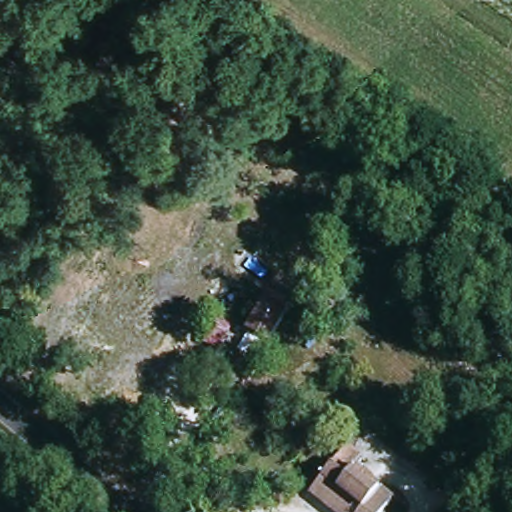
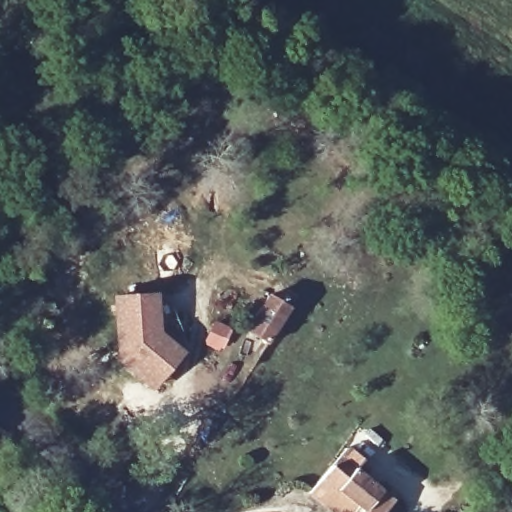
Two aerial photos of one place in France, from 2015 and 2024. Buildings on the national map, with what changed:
new [(155,297),(155,333),(180,351),(156,383),(119,354),(116,297),(155,297)]
unchanged [(263,299),(283,311),(264,344),(243,331),(263,299)]
unchanged [(232,331),(219,355),(202,345),(214,320),(232,331)]
unchanged [(309,496),(332,469),(339,460),(353,470),(374,485),(393,500),(384,512),(329,512),(309,496)]

